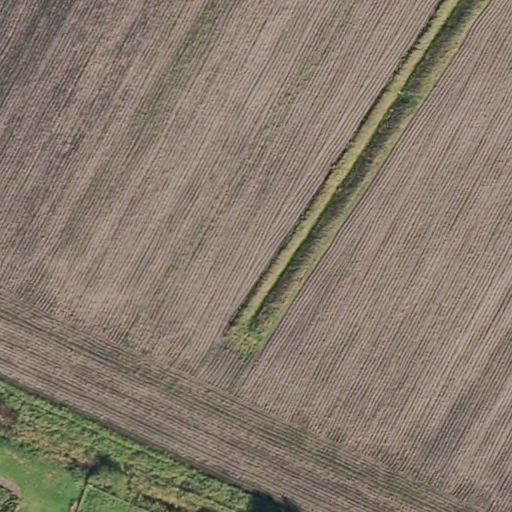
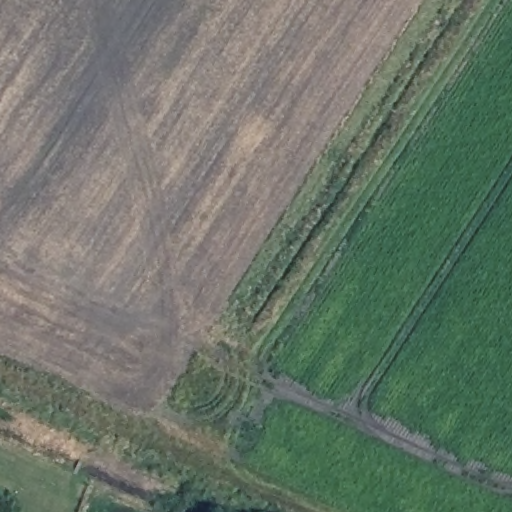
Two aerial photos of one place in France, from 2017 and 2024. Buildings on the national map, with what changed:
[]

